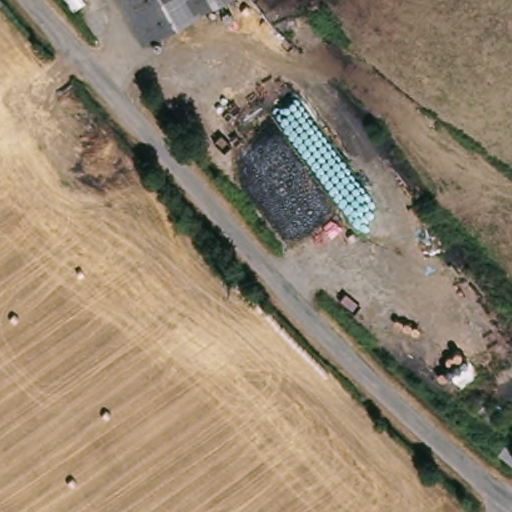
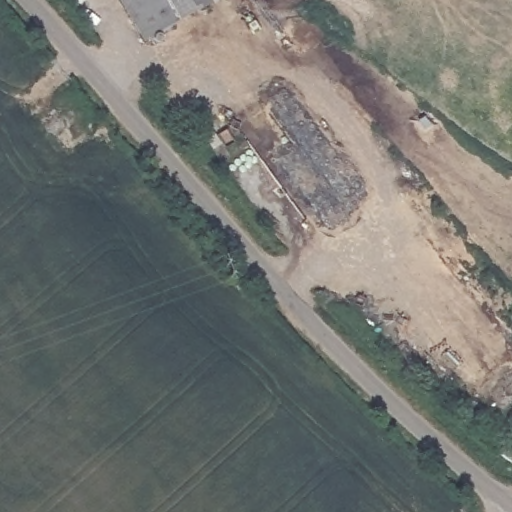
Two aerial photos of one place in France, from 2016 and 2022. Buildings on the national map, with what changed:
unchanged [(119,0),(210,0),(141,36),(119,0)]
unchanged [(507,442),(512,447),(512,460),(501,448),(507,442)]

